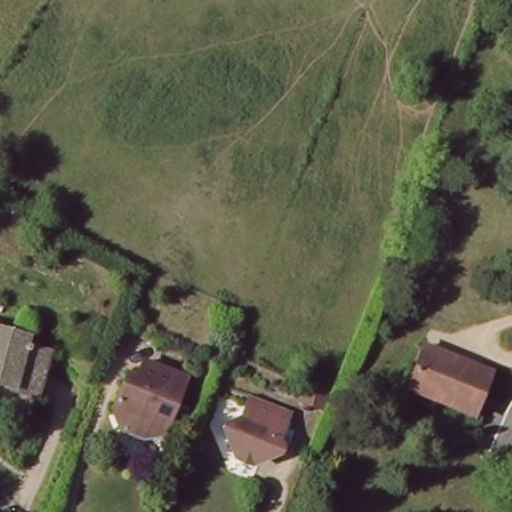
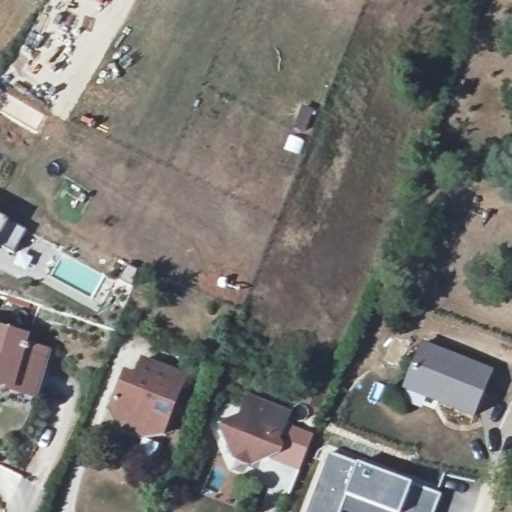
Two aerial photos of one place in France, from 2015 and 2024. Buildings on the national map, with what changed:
new [(4,246),(0,244),(0,208),(18,219),(4,246)]
unchanged [(23,349),(48,357),(33,401),(9,392),(11,385),(0,382),(0,329),(26,337),(23,349)]
unchanged [(409,375),(424,342),(493,372),(473,420),(437,404),(403,389),(409,375)]
unchanged [(167,434),(149,427),(145,439),(121,428),(123,419),(113,409),(128,372),(139,376),(146,357),(188,373),(167,434)]
unchanged [(289,424),(284,442),(291,462),(271,471),(266,465),(256,473),(248,470),(244,466),(248,457),(236,458),(225,439),(248,427),(256,410),(289,424)]
new [(342,512),(303,512),(328,451),(413,482),(401,512),(345,512),(342,511),(342,512)]
new [(442,492),(435,512),(401,512),(413,482),(442,492)]

